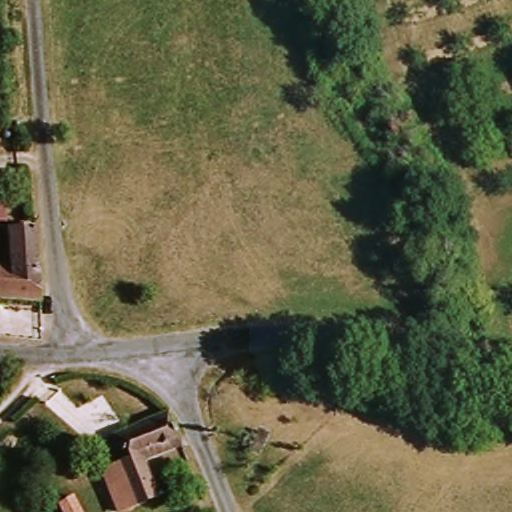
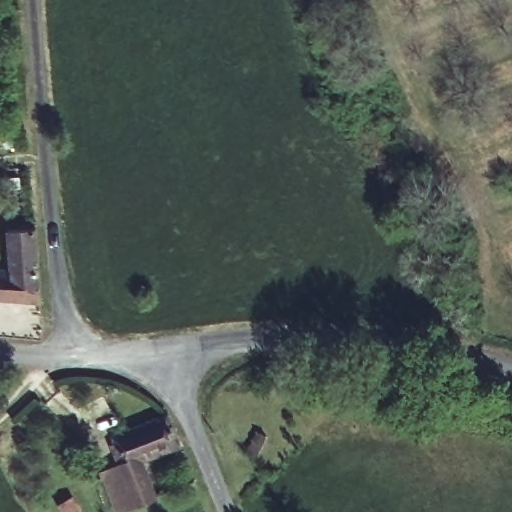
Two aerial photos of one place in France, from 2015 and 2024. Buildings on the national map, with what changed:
unchanged [(0,302),(0,259),(5,260),(6,229),(40,231),(44,305),(0,302)]
unchanged [(101,469),(112,465),(118,462),(104,431),(165,406),(176,438),(141,452),(160,498),(133,508),(122,512),(120,512),(101,469)]
unchanged [(279,447),(270,464),(260,458),(269,442),(279,447)]

